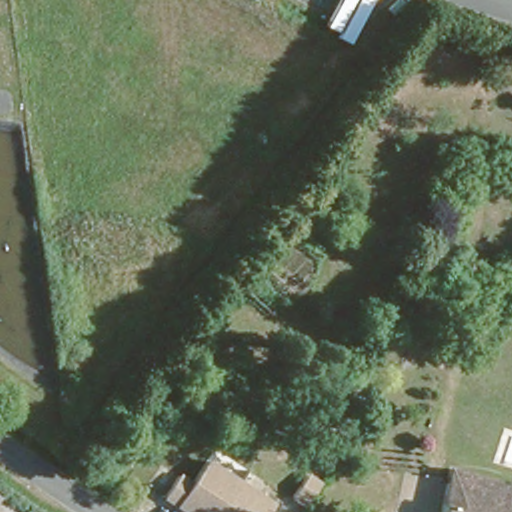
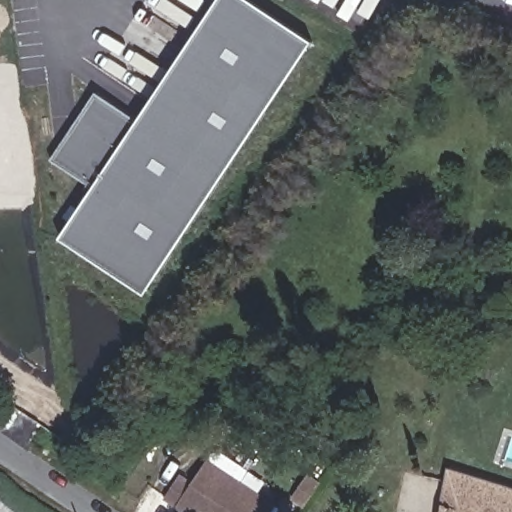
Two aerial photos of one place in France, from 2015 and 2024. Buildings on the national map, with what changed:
new [(95,93),(137,121),(218,0),(247,0),(312,43),(145,295),(60,239),(92,189),(50,161),(95,93)]
unchanged [(512,481),(512,512),(432,512),(445,458),(512,481)]
unchanged [(185,512),(164,497),(179,474),(192,483),(207,460),(276,504),(271,512),(185,512)]

